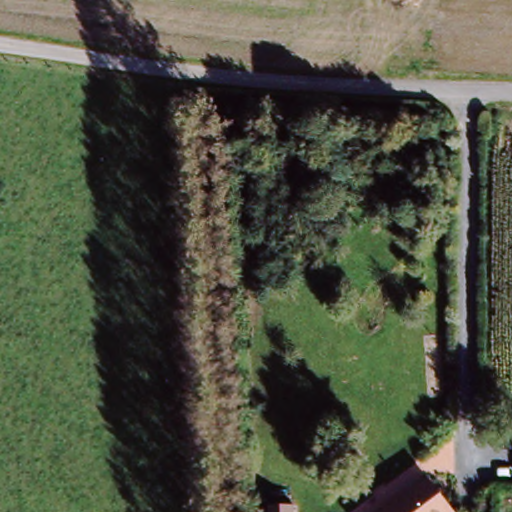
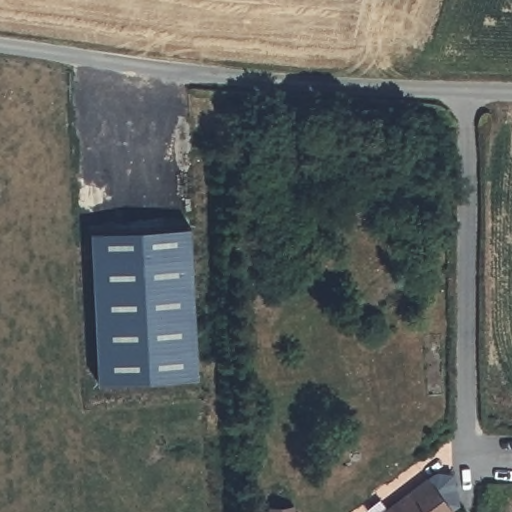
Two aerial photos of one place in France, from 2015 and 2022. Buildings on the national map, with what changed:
new [(190,225),(196,377),(95,381),(87,232),(190,225)]
unchanged [(458,511),(456,512),(371,512),(425,470),(458,511)]
new [(294,512),(265,512),(265,505),(293,503),(294,512)]

